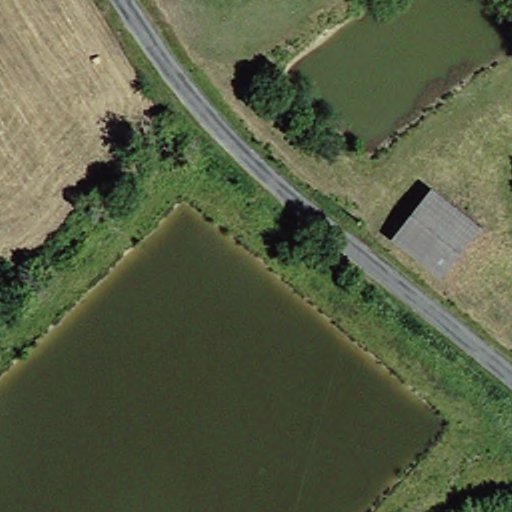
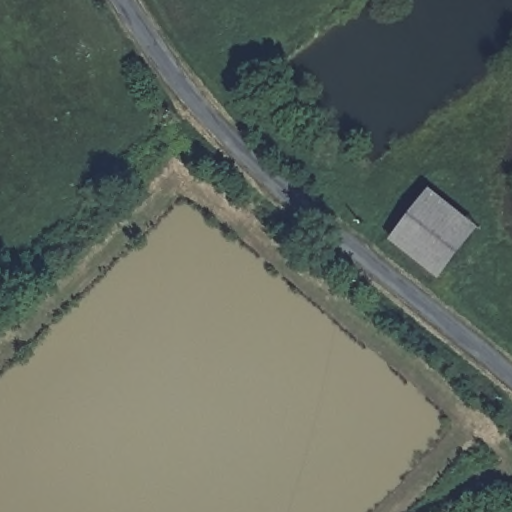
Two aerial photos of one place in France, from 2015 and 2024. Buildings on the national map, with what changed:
unchanged [(483,229),(443,281),(390,238),(432,186),(483,229)]

